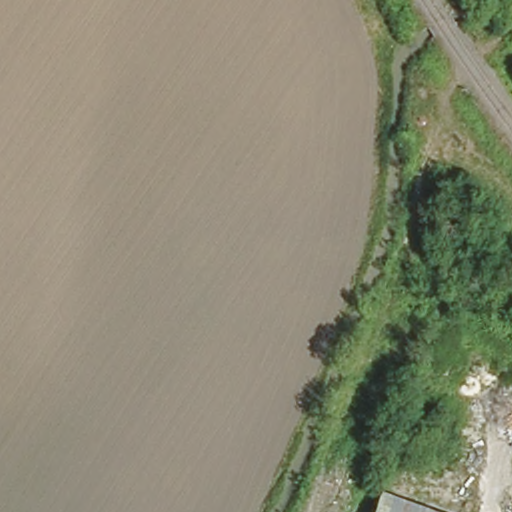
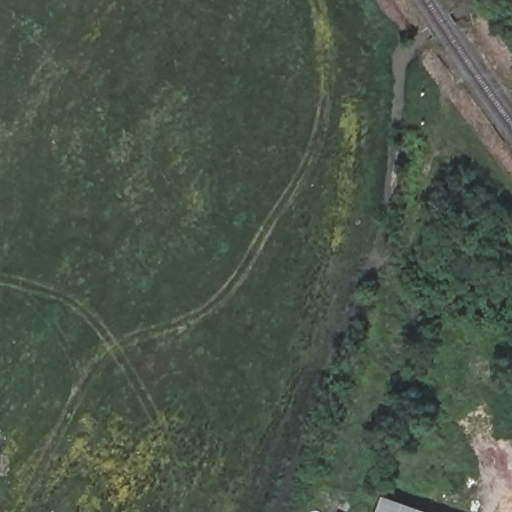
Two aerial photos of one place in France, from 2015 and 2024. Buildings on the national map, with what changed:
unchanged [(425,512),(377,512),(382,497),(425,512)]

